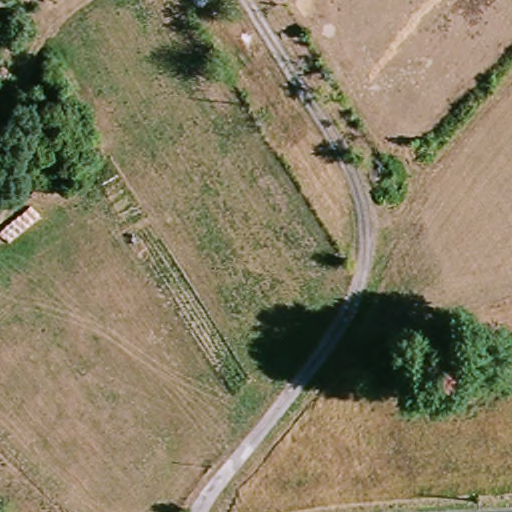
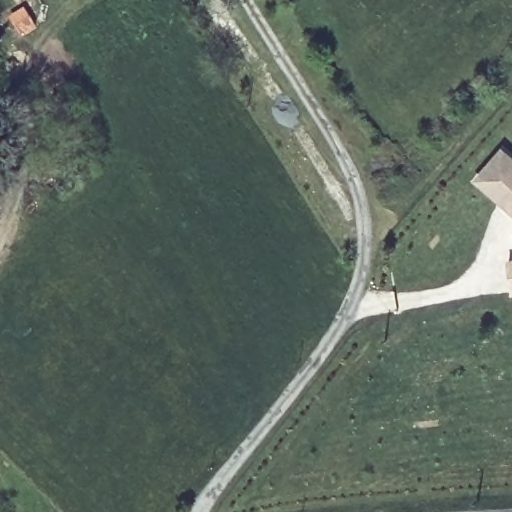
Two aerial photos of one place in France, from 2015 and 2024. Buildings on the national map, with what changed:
new [(512,154),(512,215),(474,181),(504,147),(512,154)]
new [(512,261),(512,292),(511,292),(505,262),(512,261)]

